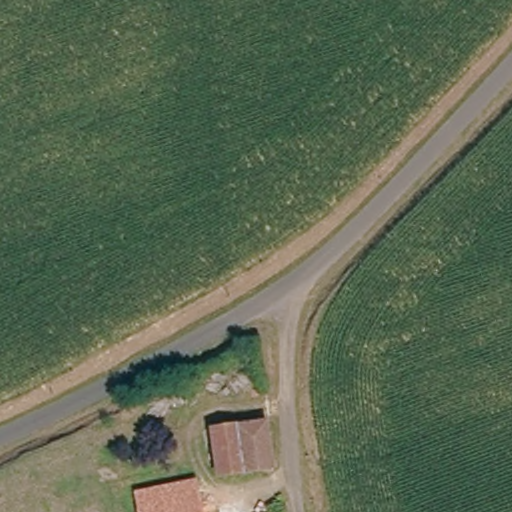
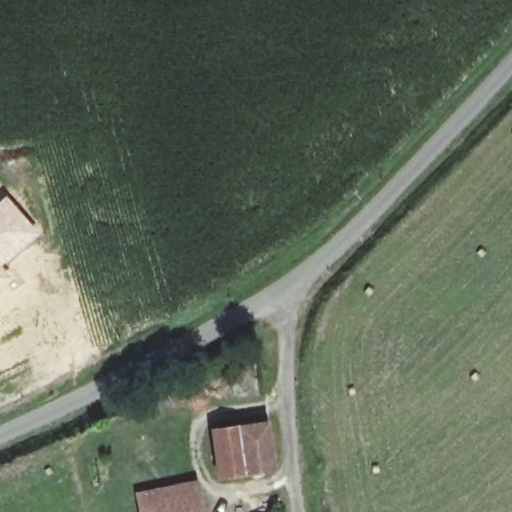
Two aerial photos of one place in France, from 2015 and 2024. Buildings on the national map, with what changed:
new [(37,233),(0,265),(0,201),(5,196),(37,233)]
new [(12,277),(0,288),(0,265),(12,277)]
unchanged [(267,422),(274,469),(219,477),(212,429),(239,426),(241,425),(267,422)]
unchanged [(141,512),(138,494),(196,483),(202,512),(141,512)]

